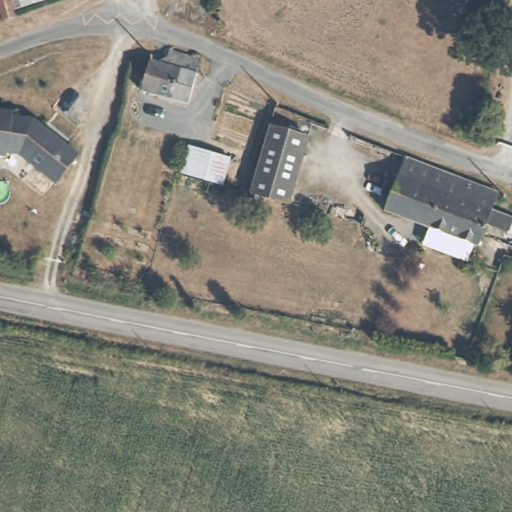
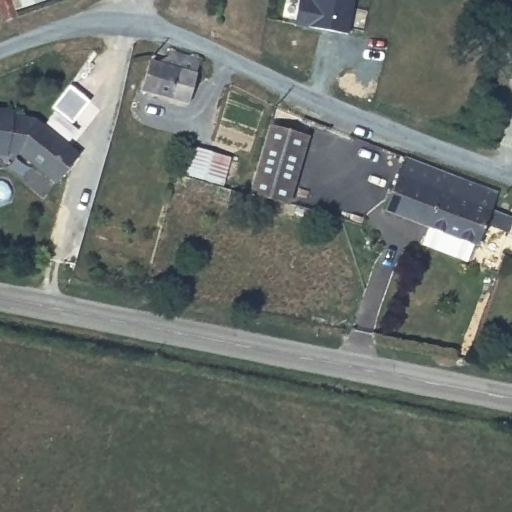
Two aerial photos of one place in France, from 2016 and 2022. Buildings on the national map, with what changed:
unchanged [(15,20),(2,25),(0,17),(0,5),(0,0),(52,0),(53,4),(11,13),(15,20)]
new [(295,25),(297,0),(307,0),(313,1),(313,0),(355,0),(350,31),(295,25)]
unchanged [(140,90),(148,60),(165,65),(169,50),(199,62),(188,104),(140,90)]
unchanged [(55,189),(40,177),(19,159),(6,155),(5,160),(0,159),(0,119),(10,120),(9,124),(32,126),(63,150),(76,160),(55,189)]
unchanged [(289,207),(246,194),(265,130),(307,142),(289,207)]
unchanged [(184,181),(191,152),(230,163),(221,191),(184,181)]
unchanged [(384,209),(404,159),(444,174),(425,225),(384,209)]
unchanged [(444,174),(498,195),(491,212),(512,221),(512,223),(507,235),(485,226),(476,246),(425,225),(444,174)]

